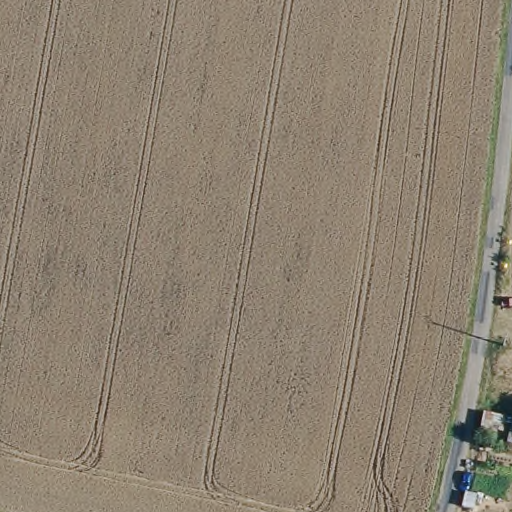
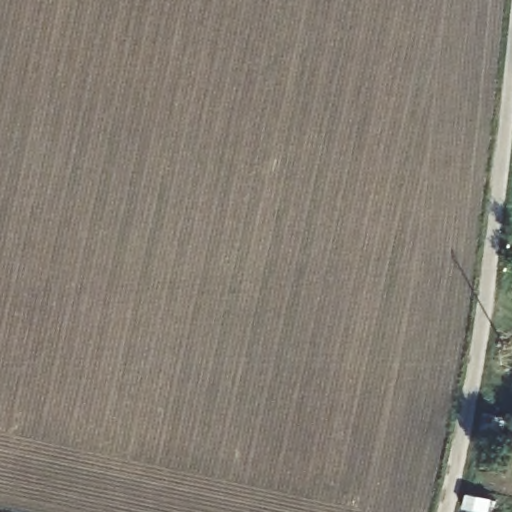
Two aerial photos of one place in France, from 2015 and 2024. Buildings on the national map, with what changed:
unchanged [(500,412),(496,437),(478,436),(482,407),(500,412)]

